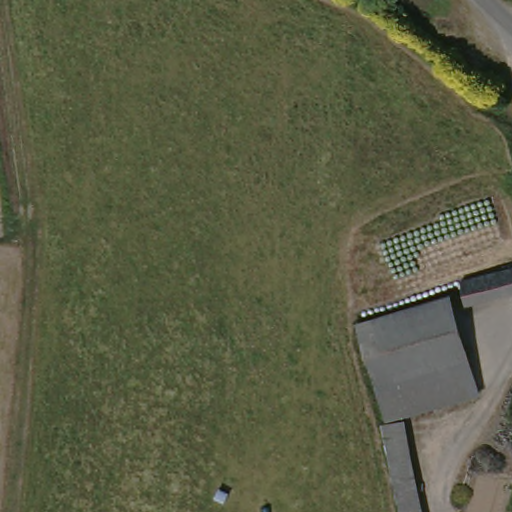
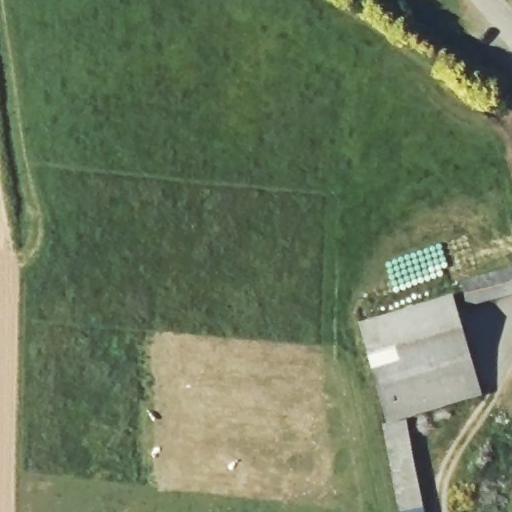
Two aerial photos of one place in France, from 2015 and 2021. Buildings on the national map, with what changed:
unchanged [(470,282),(468,276),(512,264),(512,290),(474,300),(470,282)]
unchanged [(430,512),(402,512),(383,425),(389,423),(357,322),(457,291),(485,393),(410,417),(430,512)]

